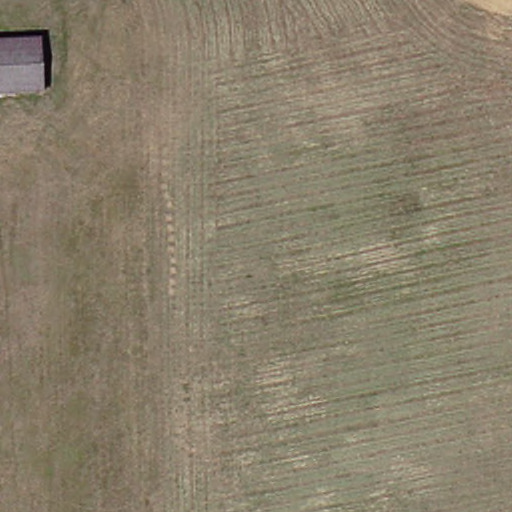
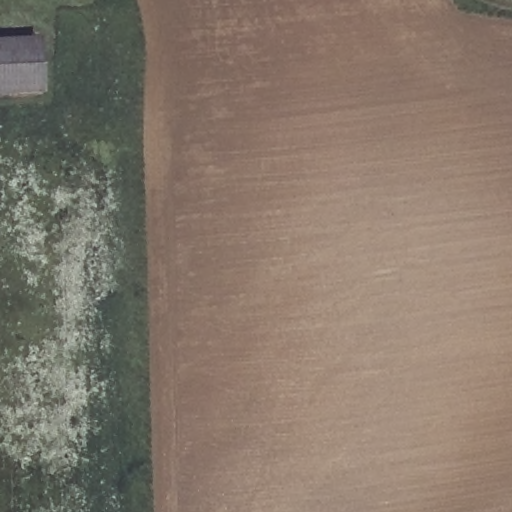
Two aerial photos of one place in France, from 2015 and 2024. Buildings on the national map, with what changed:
unchanged [(47,48),(47,99),(0,102),(0,48),(47,48)]

